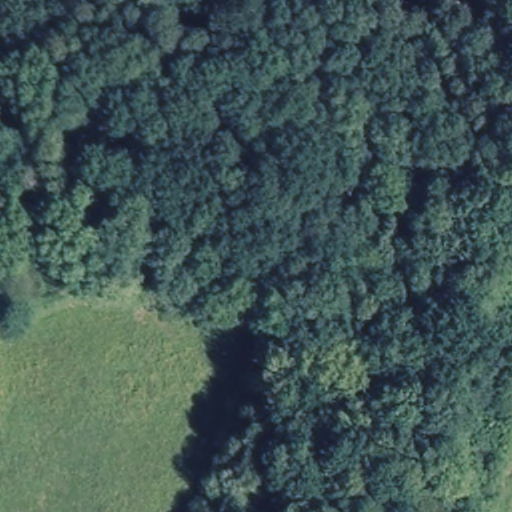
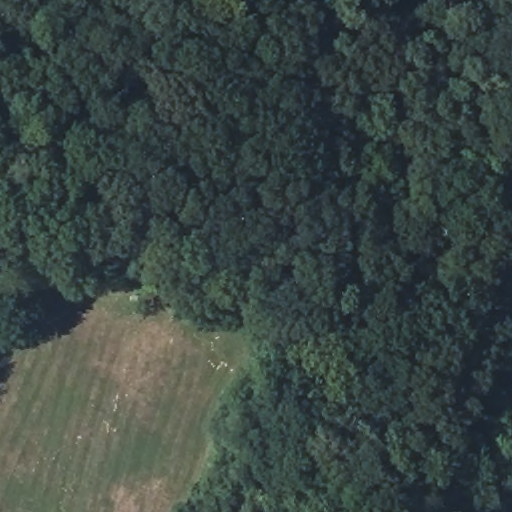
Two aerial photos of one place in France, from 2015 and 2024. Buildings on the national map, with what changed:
[]

